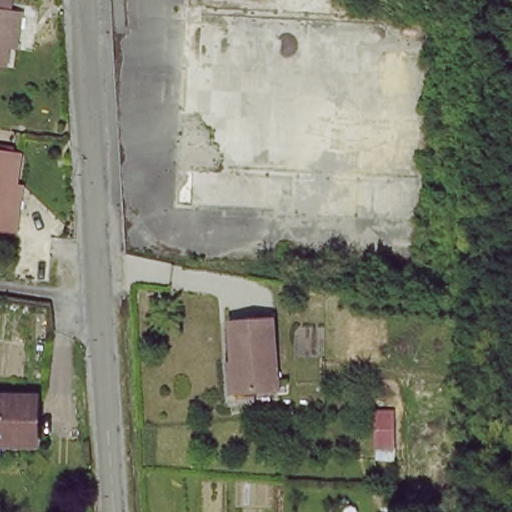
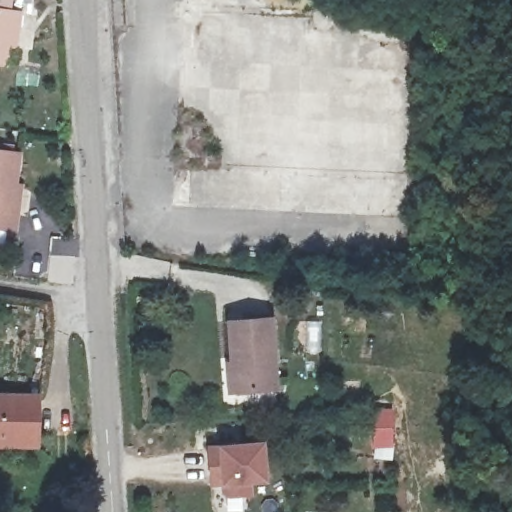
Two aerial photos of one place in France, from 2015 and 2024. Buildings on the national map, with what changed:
unchanged [(12,0),(11,14),(21,15),(18,46),(10,46),(6,69),(0,68),(0,0),(12,0)]
unchanged [(20,156),(11,214),(18,215),(15,232),(0,230),(0,153),(20,156)]
unchanged [(271,395),(230,395),(230,321),(266,323),(271,395)]
unchanged [(0,445),(0,399),(35,400),(33,445),(0,445)]
new [(206,445),(216,445),(264,440),(266,483),(250,484),(250,497),(227,497),(220,491),(220,485),(208,485),(206,445)]

